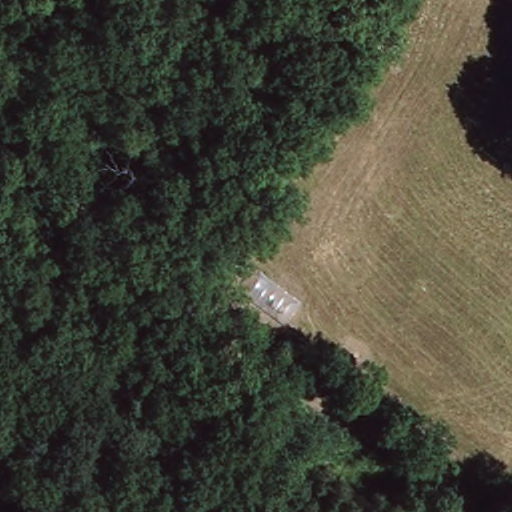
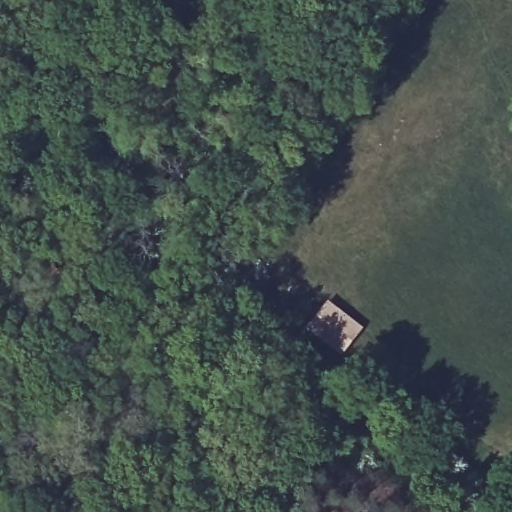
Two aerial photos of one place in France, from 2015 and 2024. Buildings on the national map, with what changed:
new [(307,330),(329,301),(364,329),(344,356),(307,330)]

